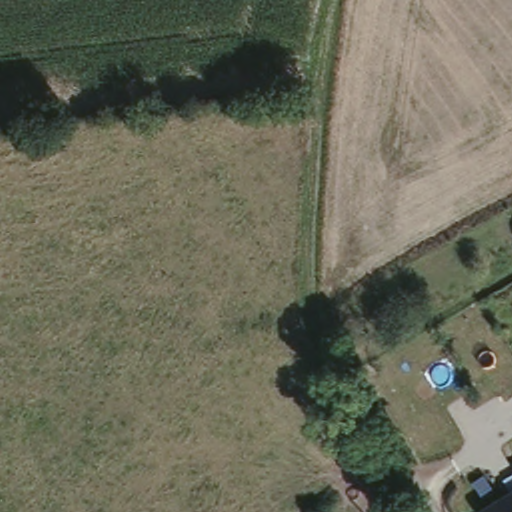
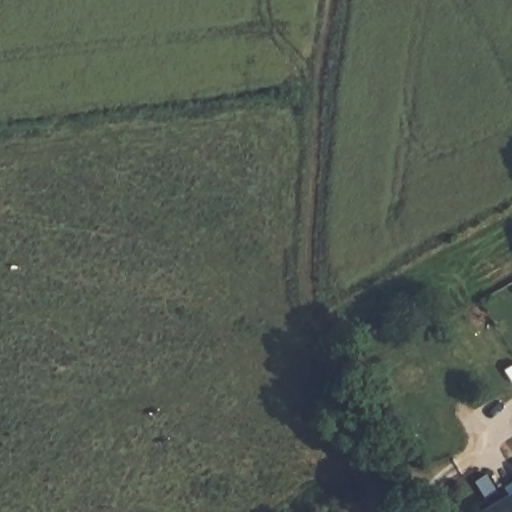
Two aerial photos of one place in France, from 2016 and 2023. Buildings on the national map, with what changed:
unchanged [(512,480),(512,505),(501,512),(475,512),(471,505),(512,480)]
unchanged [(501,512),(512,505),(512,512),(501,512)]

